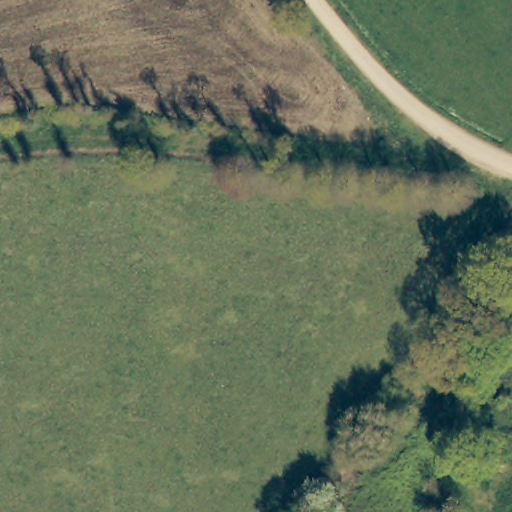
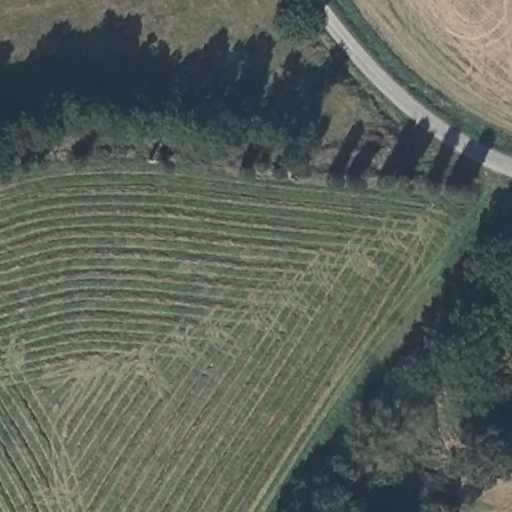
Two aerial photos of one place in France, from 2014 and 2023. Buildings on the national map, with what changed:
[]

